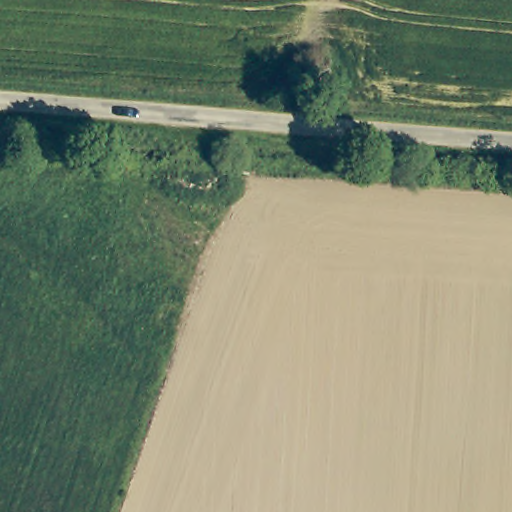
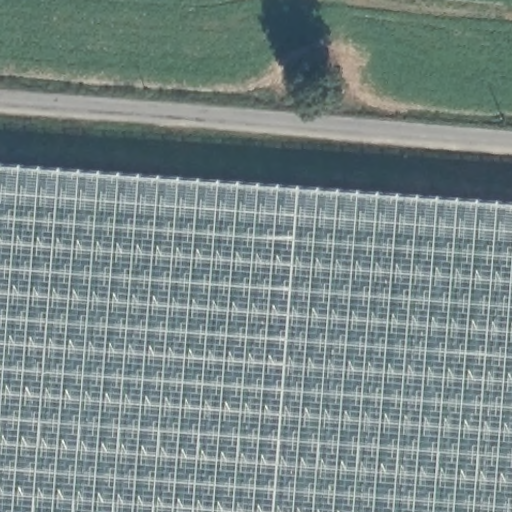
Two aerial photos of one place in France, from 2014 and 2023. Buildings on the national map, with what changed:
new [(0,165),(512,204),(512,512),(0,512),(0,165)]
demolished [(196,284),(161,274),(125,264),(132,239),(137,239),(149,199),(166,204),(189,212),(177,250),(205,258),(196,284)]

